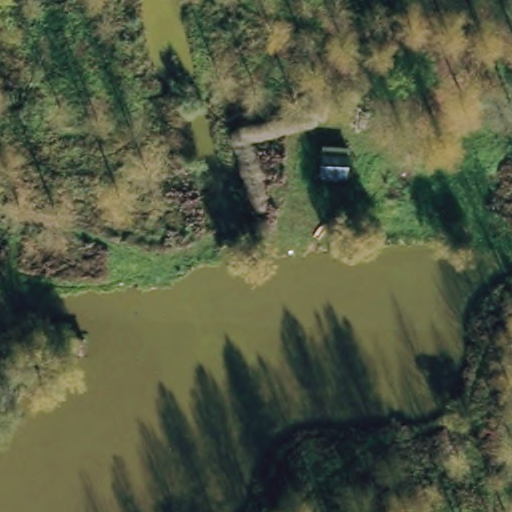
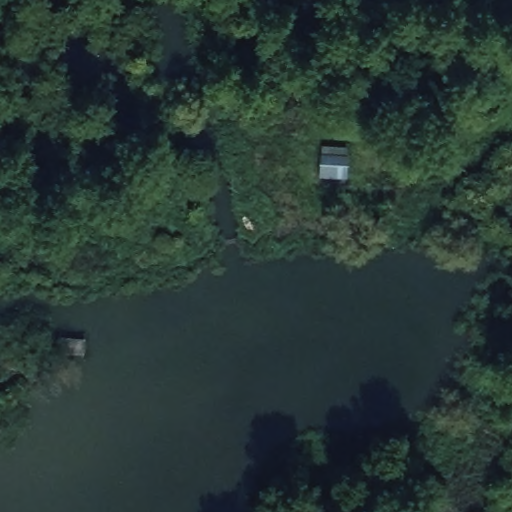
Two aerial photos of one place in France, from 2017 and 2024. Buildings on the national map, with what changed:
unchanged [(345,180),(316,177),(317,147),(344,150),(345,180)]

